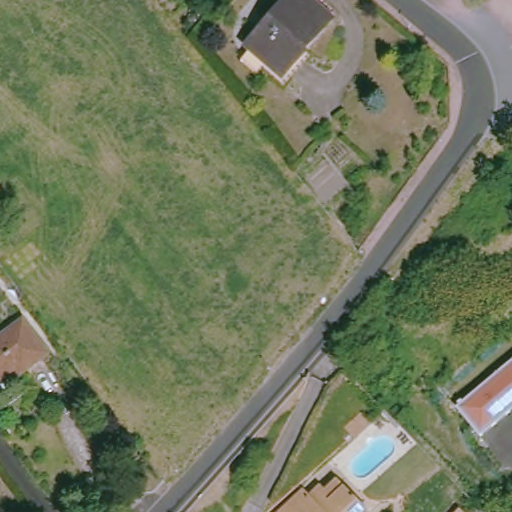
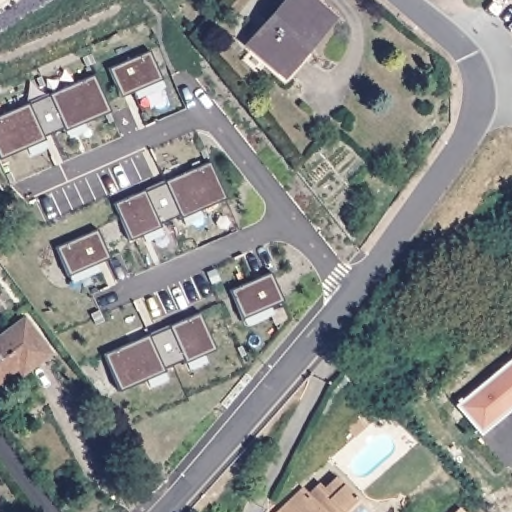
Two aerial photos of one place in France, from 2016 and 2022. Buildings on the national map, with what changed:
unchanged [(301,45),(303,48),(279,73),(243,41),(279,0),(312,0),(329,15),(301,45)]
new [(108,71),(150,53),(163,81),(121,100),(108,71)]
new [(65,135),(64,131),(44,139),(46,143),(0,163),(0,161),(0,118),(30,105),(31,109),(51,101),(49,97),(95,77),(111,115),(65,135)]
new [(181,220),(179,217),(159,225),(161,229),(130,243),(113,205),(145,191),(146,195),(166,187),(164,183),(210,163),(226,201),(181,220)]
new [(56,250),(98,232),(110,261),(69,279),(56,250)]
new [(230,293),(271,275),(284,304),(243,322),(230,293)]
new [(185,366),(183,363),(164,371),(166,375),(120,395),(103,357),(149,337),(151,341),(171,333),(169,329),(200,315),(216,353),(185,366)]
unchanged [(46,354),(20,373),(14,365),(0,375),(0,334),(18,320),(46,354)]
unchanged [(512,415),(483,438),(459,407),(512,366),(512,415)]
unchanged [(366,412),(375,421),(359,436),(351,427),(366,412)]
unchanged [(313,501),(336,480),(367,512),(277,512),(301,489),(313,501)]
unchanged [(458,507),(463,512),(453,512),(458,507)]

